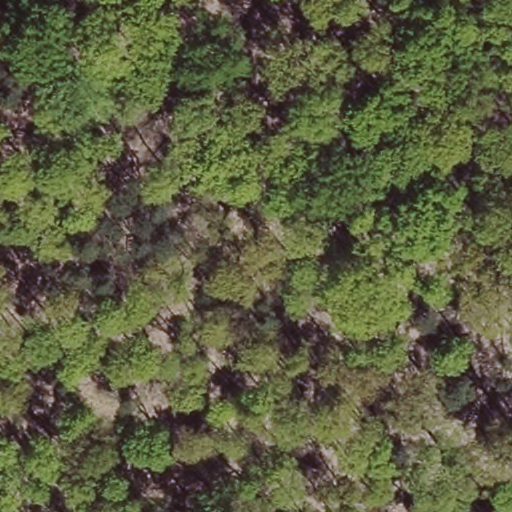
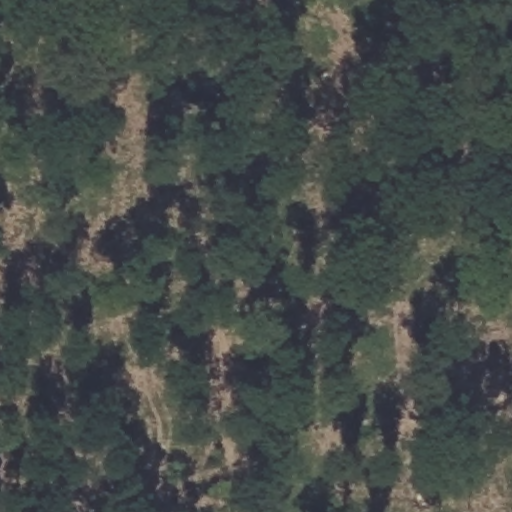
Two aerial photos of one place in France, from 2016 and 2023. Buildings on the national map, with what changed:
[]

